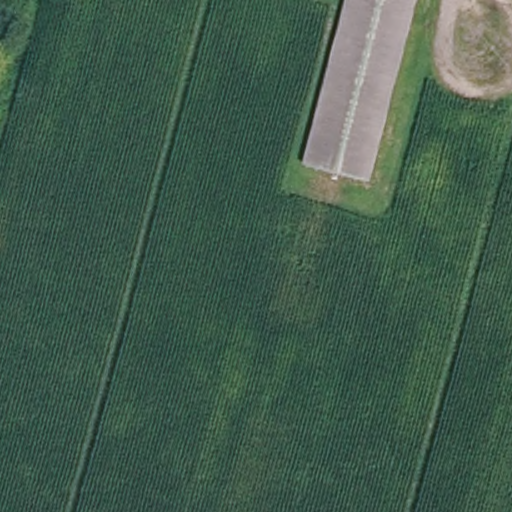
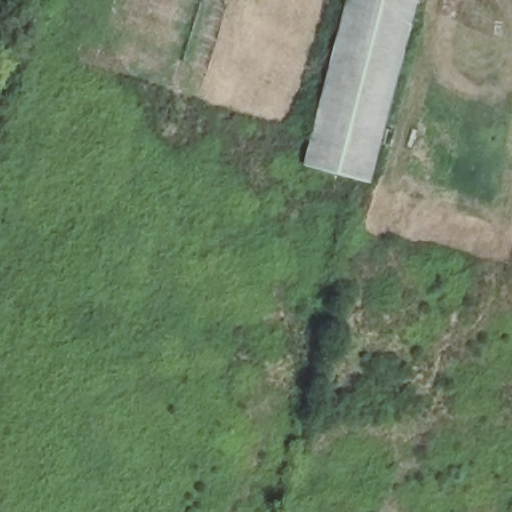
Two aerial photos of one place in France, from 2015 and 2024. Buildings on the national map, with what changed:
unchanged [(347,0),(407,0),(403,21),(375,181),(316,171),(333,77),(347,0)]

